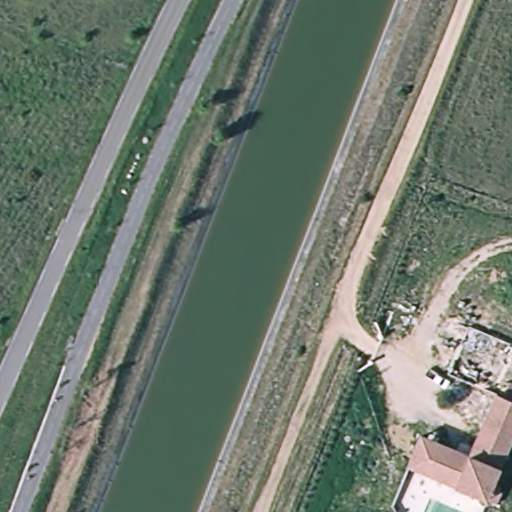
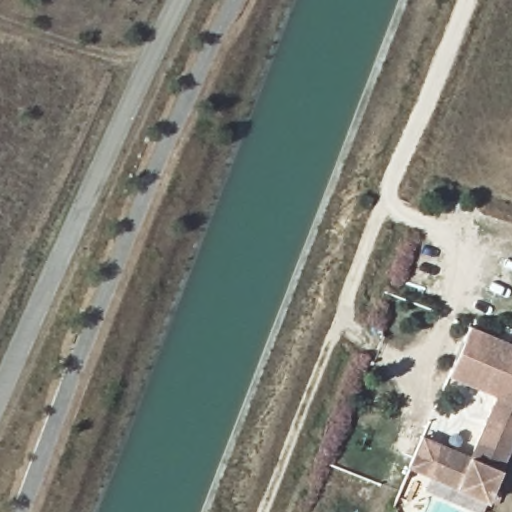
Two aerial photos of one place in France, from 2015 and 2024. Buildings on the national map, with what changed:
new [(448,376),(472,325),(512,342),(512,382),(510,381),(504,397),(497,394),(448,376)]
unchanged [(490,502),(407,466),(422,433),(467,451),(497,394),(504,397),(510,381),(512,382),(512,450),(490,502)]

